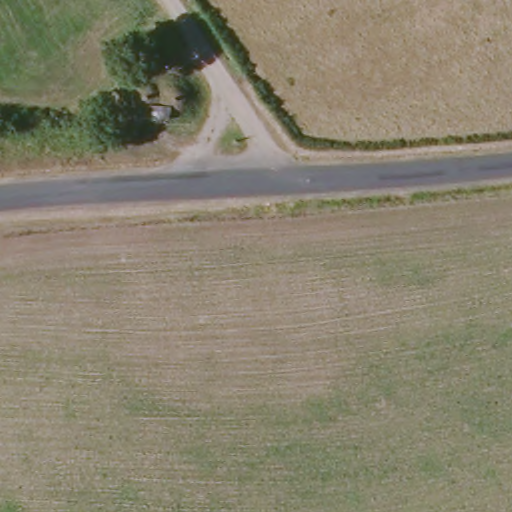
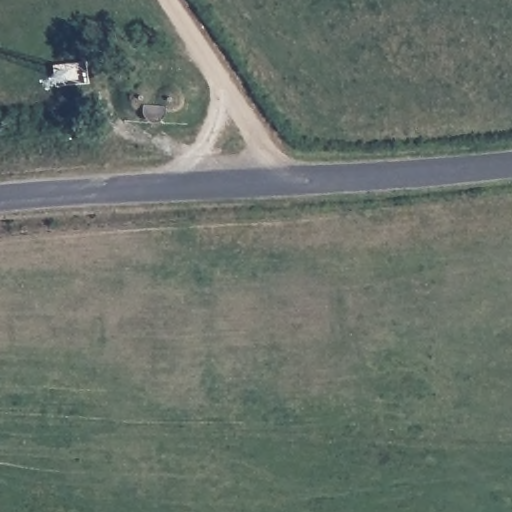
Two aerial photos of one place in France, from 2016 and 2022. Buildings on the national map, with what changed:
[]

